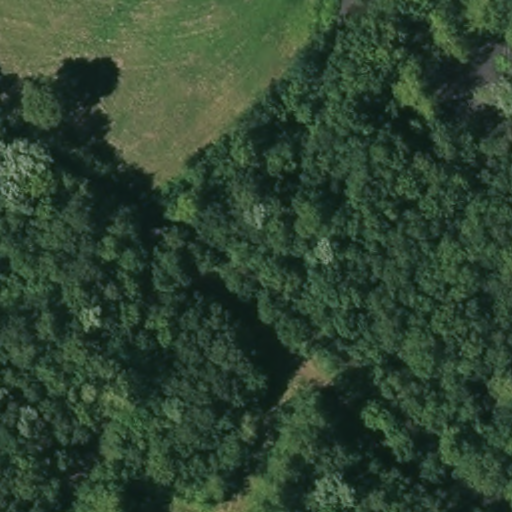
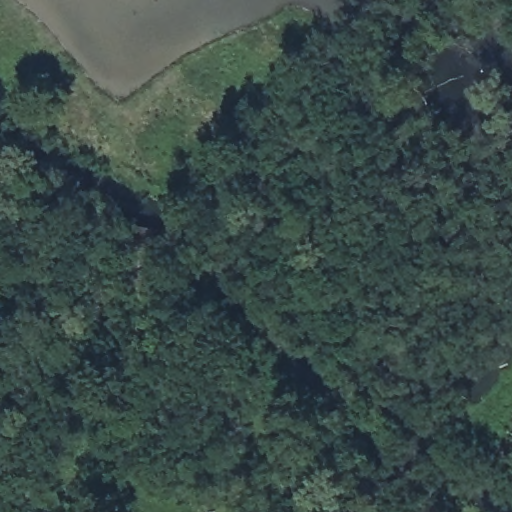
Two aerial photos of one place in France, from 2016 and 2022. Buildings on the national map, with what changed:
unchanged [(124,222),(155,228),(151,251),(120,246),(124,222)]

